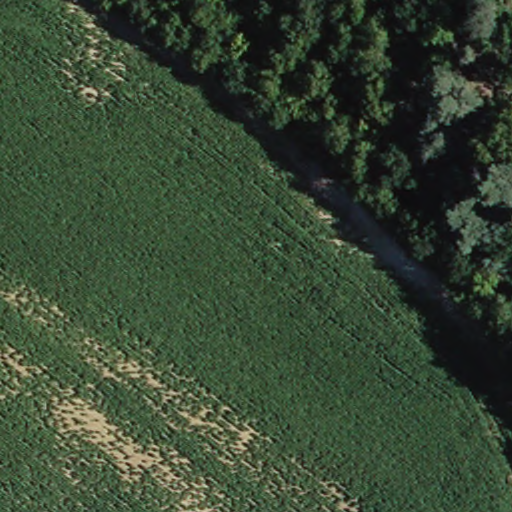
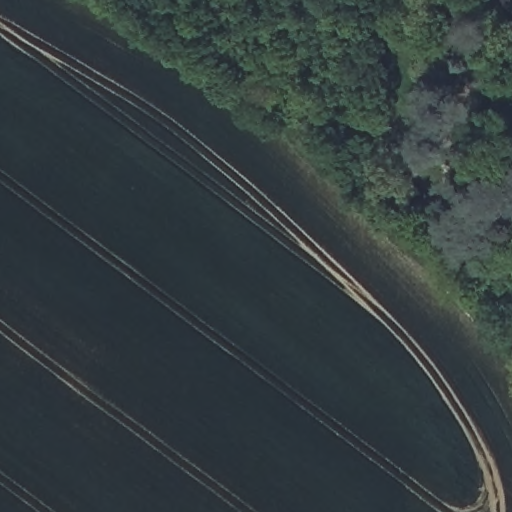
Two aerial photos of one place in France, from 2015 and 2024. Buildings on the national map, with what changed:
[]

